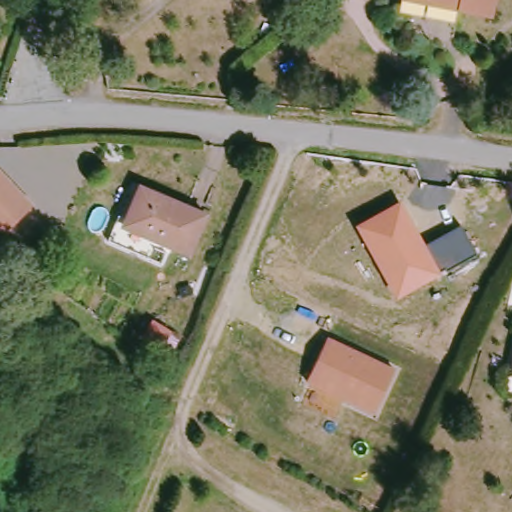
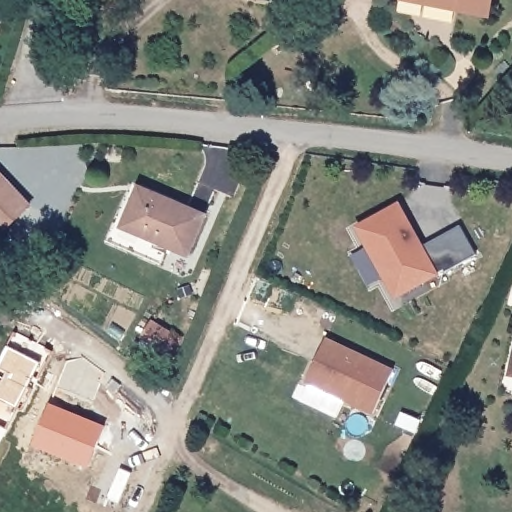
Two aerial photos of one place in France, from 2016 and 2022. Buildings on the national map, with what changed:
unchanged [(457,9),(412,0),(492,0),(489,15),(457,9)]
unchanged [(0,234),(0,175),(29,206),(0,234)]
unchanged [(125,220),(140,187),(205,215),(188,255),(156,241),(123,227),(125,220)]
unchanged [(400,202),(425,245),(460,225),(475,254),(446,271),(444,267),(439,271),(441,275),(395,299),(355,226),(400,202)]
unchanged [(143,336),(152,322),(168,333),(160,347),(143,336)]
new [(53,351),(22,410),(18,407),(7,428),(0,425),(0,360),(15,331),(53,351)]
unchanged [(395,368),(373,413),(305,382),(327,337),(395,368)]
new [(67,362),(84,357),(105,373),(93,402),(57,387),(67,362)]
unchanged [(510,375),(512,369),(512,375),(510,375)]
new [(49,405),(104,427),(88,467),(33,443),(49,405)]
new [(0,441),(0,425),(7,428),(0,441)]

